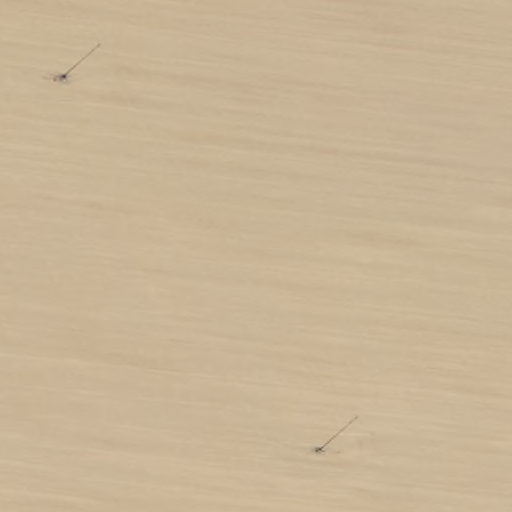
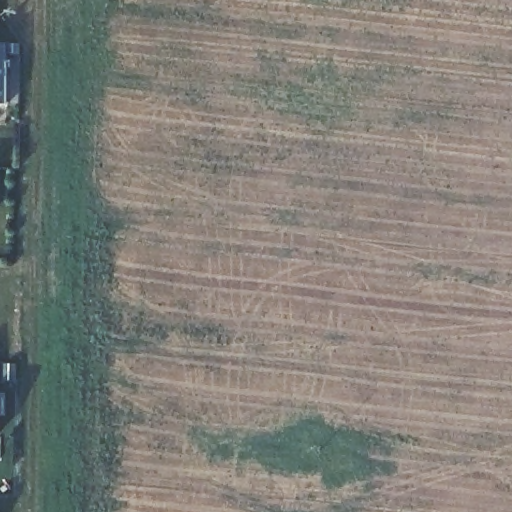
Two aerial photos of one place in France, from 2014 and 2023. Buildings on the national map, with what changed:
new [(7,44),(8,104),(0,104),(0,44),(7,44)]

